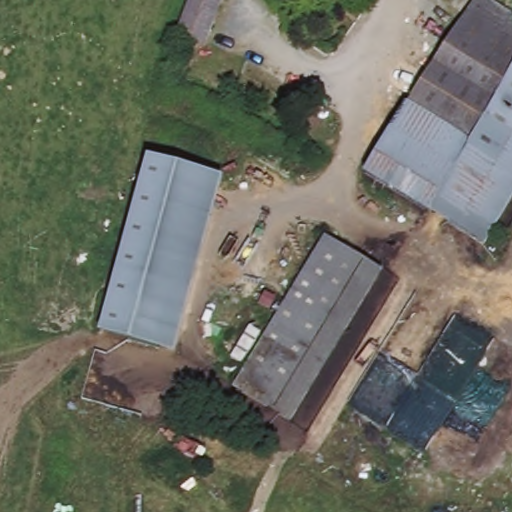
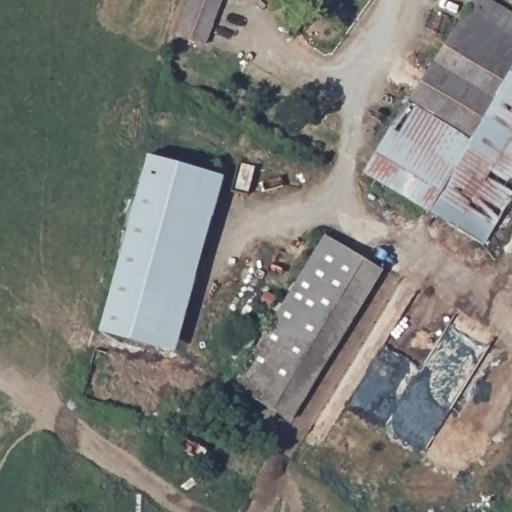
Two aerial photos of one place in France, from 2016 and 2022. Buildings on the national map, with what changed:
unchanged [(176,37),(188,0),(221,0),(206,47),(176,37)]
unchanged [(429,62),(463,6),(487,20),(484,27),(512,44),(512,65),(490,101),(429,62)]
unchanged [(362,174),(429,62),(490,101),(512,65),(512,194),(484,240),(480,248),(442,223),(362,174)]
unchanged [(160,349),(101,335),(145,160),(204,174),(160,349)]
unchanged [(218,178),(174,353),(160,349),(204,174),(218,178)]
unchanged [(257,398),(232,384),(323,234),(347,249),(257,398)]
unchanged [(379,269),(288,418),(257,398),(347,249),(379,269)]

